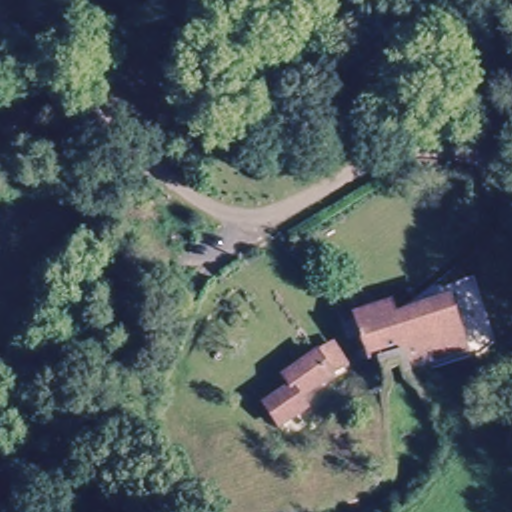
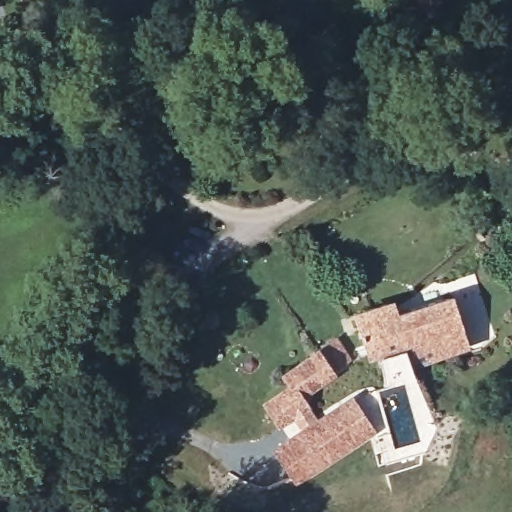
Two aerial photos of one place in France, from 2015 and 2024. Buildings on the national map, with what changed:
unchanged [(465,347),(409,366),(403,345),(366,356),(353,310),(387,300),(391,311),(448,293),(465,347)]
unchanged [(278,378),(313,353),(328,342),(344,365),(328,376),(293,401),(278,378)]
new [(293,401),(302,395),(316,417),(350,394),(376,433),(296,486),(269,449),(299,428),(293,420),(278,429),(260,403),(284,387),(293,401)]

